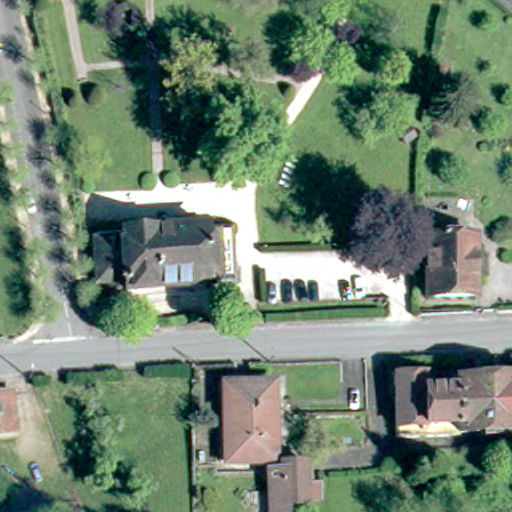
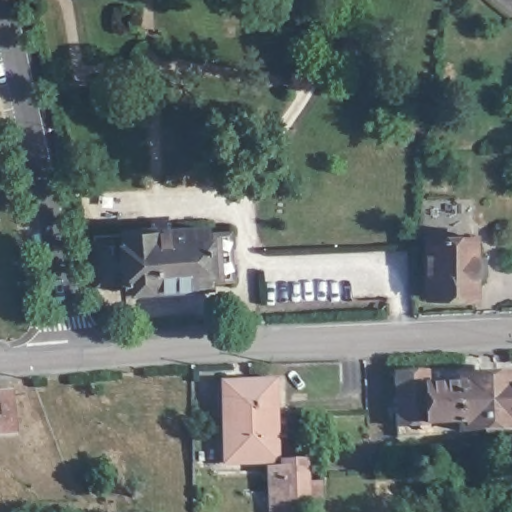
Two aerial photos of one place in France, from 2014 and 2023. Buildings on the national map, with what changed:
unchanged [(228,274),(207,275),(207,282),(152,286),(152,284),(124,286),(123,277),(96,279),(93,231),(204,224),(205,231),(225,230),(228,274)]
unchanged [(480,278),(480,298),(432,298),(433,237),(480,238),(479,257),(487,257),(487,278),(480,278)]
unchanged [(502,443),(502,438),(495,438),(495,432),(463,433),(463,435),(401,438),(400,378),(431,376),(432,390),(462,389),(461,383),(512,381),(512,442),(502,443)]
unchanged [(233,385),(285,384),(287,457),(268,457),(235,458),(233,385)]
unchanged [(18,437),(0,439),(0,402),(15,401),(18,437)]
unchanged [(287,457),(313,455),(313,512),(268,512),(268,457),(287,457)]

